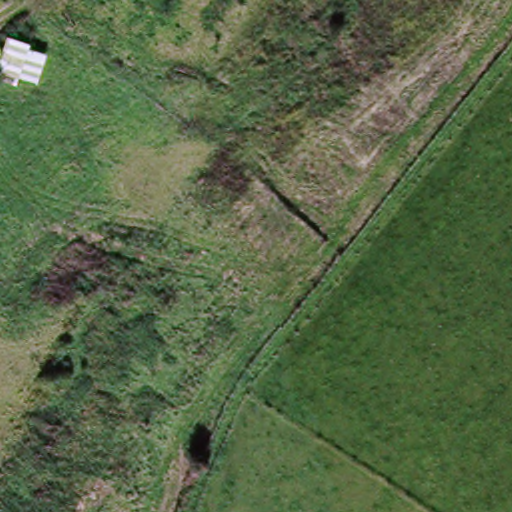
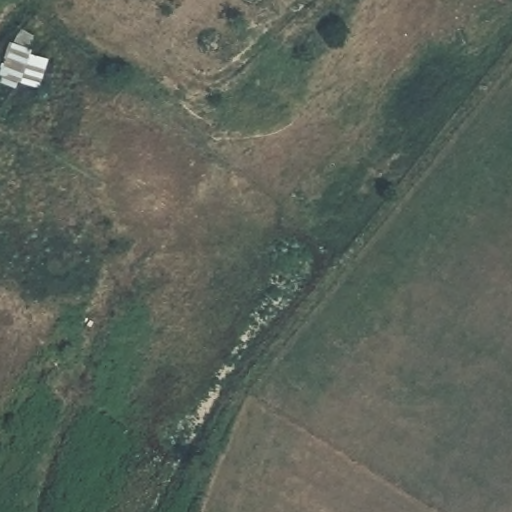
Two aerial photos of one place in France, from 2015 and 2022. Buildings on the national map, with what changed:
[]

